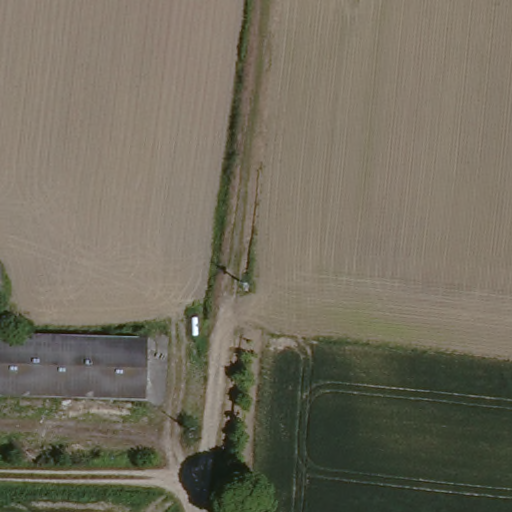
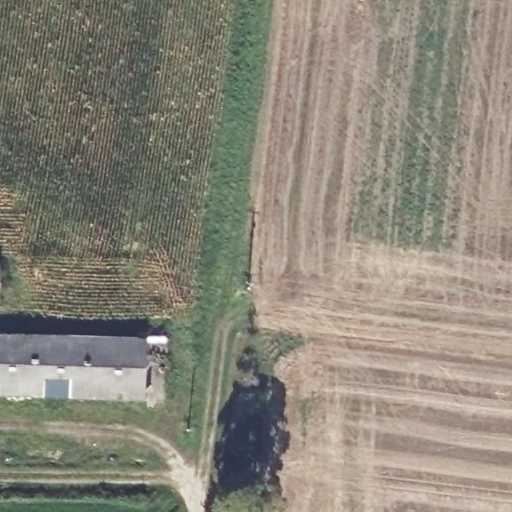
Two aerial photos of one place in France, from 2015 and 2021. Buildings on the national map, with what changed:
unchanged [(0,399),(0,342),(133,347),(134,343),(140,343),(139,349),(138,404),(0,399)]

